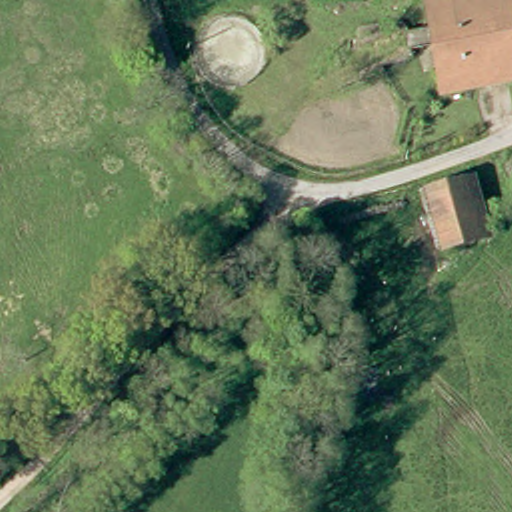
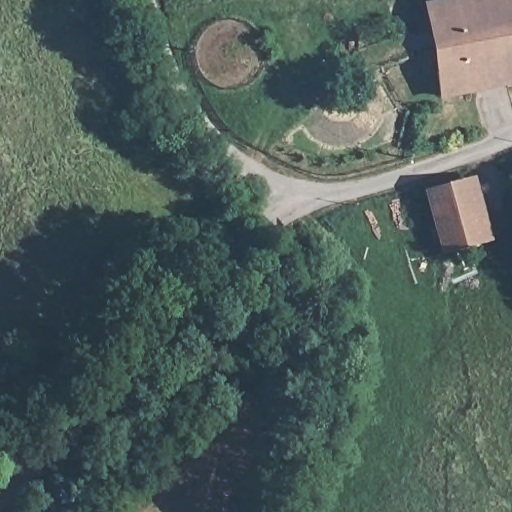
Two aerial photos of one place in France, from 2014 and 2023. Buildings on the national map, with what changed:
unchanged [(465,86),(441,91),(425,0),(512,0),(512,73),(464,83),(465,86)]
unchanged [(431,183),(462,174),(470,198),(480,231),(443,241),(426,184),(431,183)]

